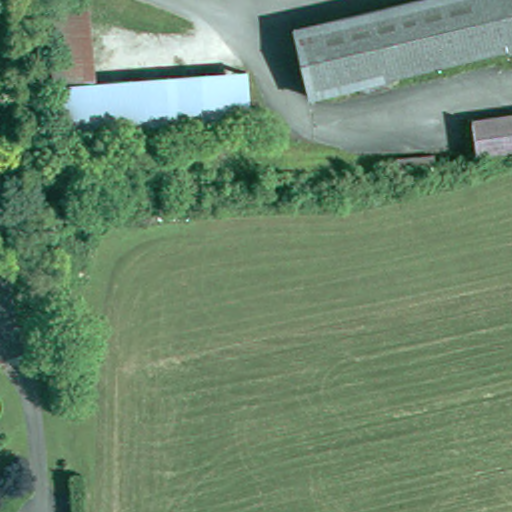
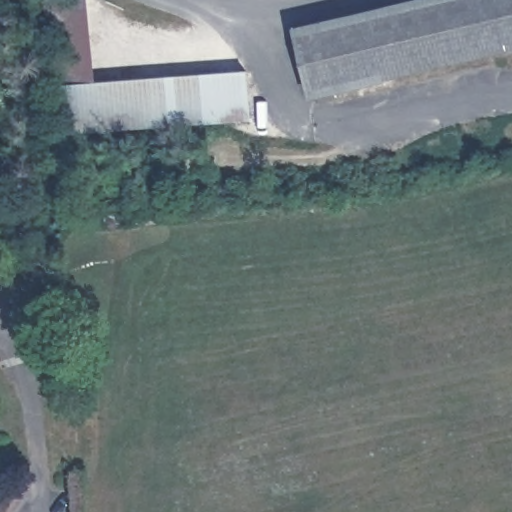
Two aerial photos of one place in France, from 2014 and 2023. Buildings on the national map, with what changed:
unchanged [(50,0),(89,0),(96,83),(247,71),(251,118),(61,132),(50,0)]
unchanged [(293,33),(431,0),(512,0),(512,51),(308,99),(293,33)]
demolished [(477,147),(474,119),(512,114),(512,148),(479,153),(477,147)]

